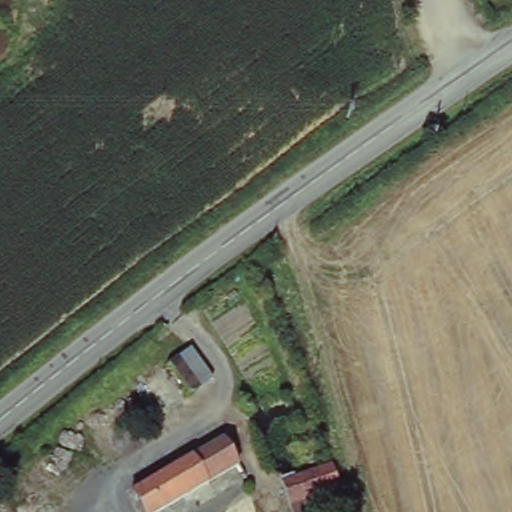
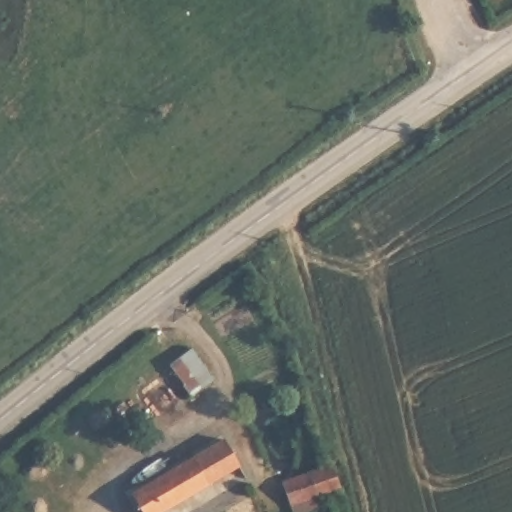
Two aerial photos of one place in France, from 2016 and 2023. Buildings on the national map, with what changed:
unchanged [(188,350),(211,383),(189,396),(163,365),(188,350)]
unchanged [(220,435),(239,476),(169,512),(135,512),(123,492),(220,435)]
unchanged [(326,456),(339,476),(316,489),(321,501),(292,510),(277,480),(326,456)]

